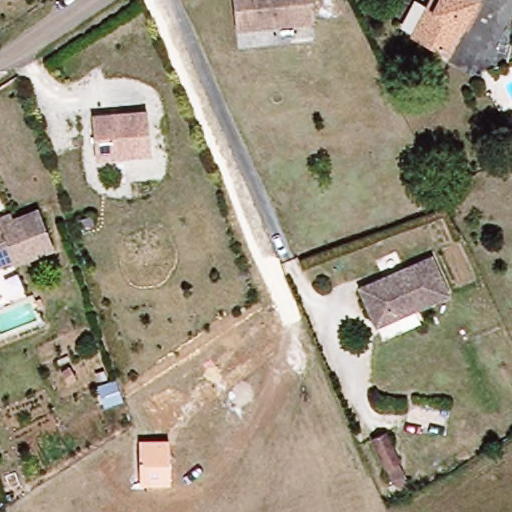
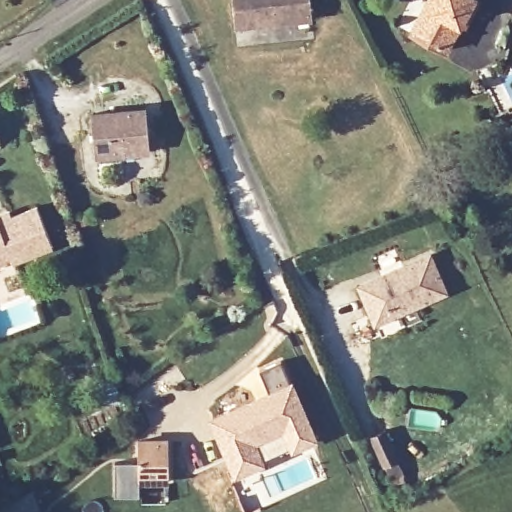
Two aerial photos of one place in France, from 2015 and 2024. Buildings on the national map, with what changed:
unchanged [(310,12),(234,21),(231,0),(308,0),(310,12)]
unchanged [(414,0),(422,0),(430,4),(432,0),(479,0),(451,51),(416,31),(402,23),(414,0)]
unchanged [(153,151),(99,157),(94,115),(149,109),(153,151)]
unchanged [(14,218),(39,207),(55,246),(16,263),(14,258),(0,264),(0,217),(11,212),(14,218)]
unchanged [(359,283),(431,252),(447,289),(376,321),(359,283)]
new [(268,390),(258,369),(282,359),(293,379),(319,439),(234,478),(206,418),(268,390)]
unchanged [(384,462),(370,433),(384,427),(398,456),(384,462)]
unchanged [(169,482),(138,483),(138,439),(169,438),(169,482)]
new [(8,500),(34,490),(42,512),(6,512),(5,509),(10,507),(8,500)]

